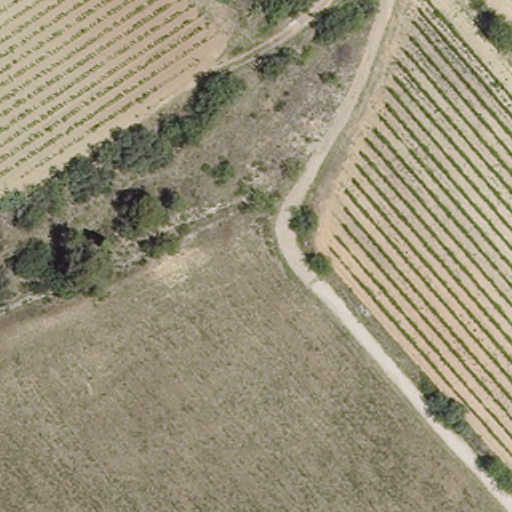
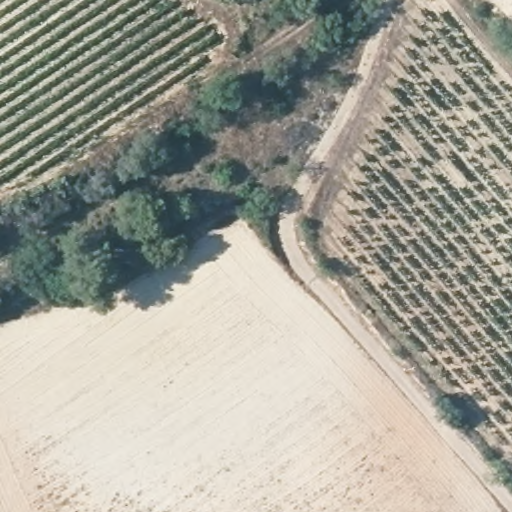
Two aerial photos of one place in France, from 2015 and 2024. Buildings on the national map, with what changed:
[]

